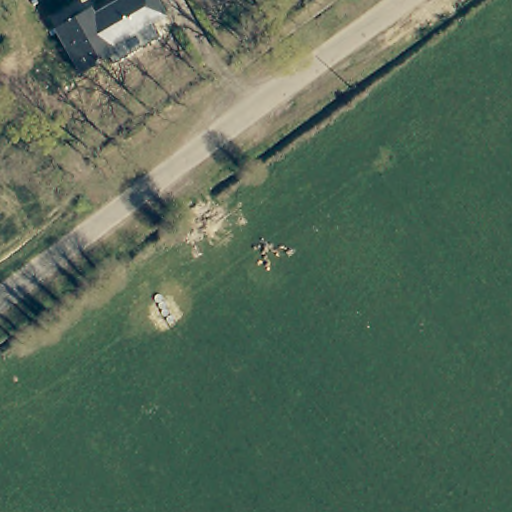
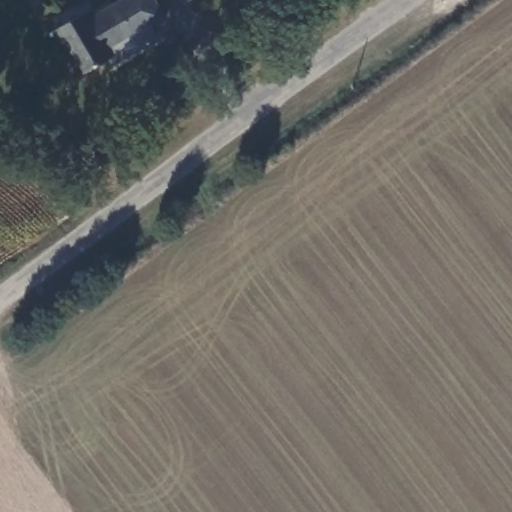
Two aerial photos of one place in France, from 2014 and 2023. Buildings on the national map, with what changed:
unchanged [(50,32),(84,10),(90,19),(123,0),(153,0),(165,17),(105,54),(109,61),(78,77),(50,32)]

